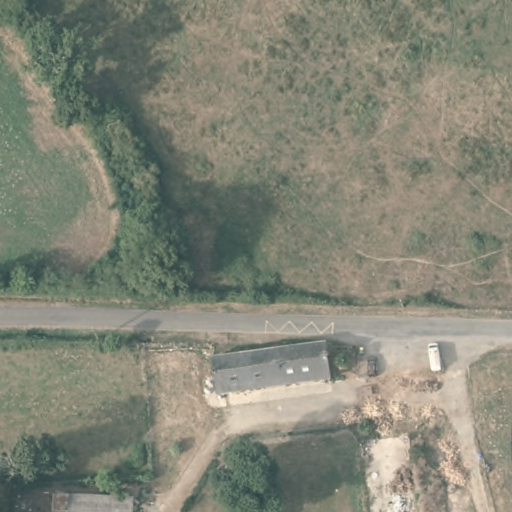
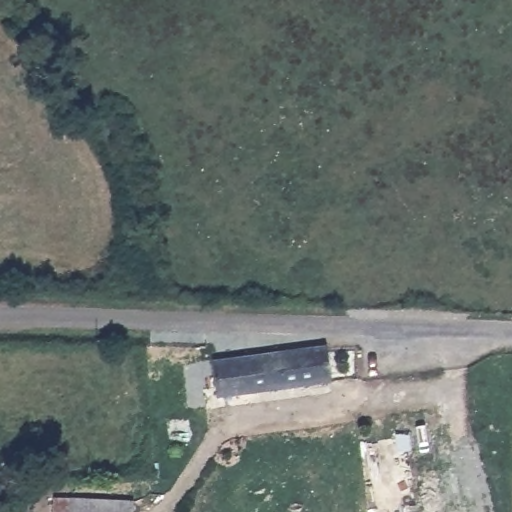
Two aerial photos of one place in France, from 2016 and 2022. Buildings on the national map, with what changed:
unchanged [(325,352),(329,385),(220,390),(216,360),(325,352)]
unchanged [(131,512),(70,512),(70,500),(131,499),(131,512)]

